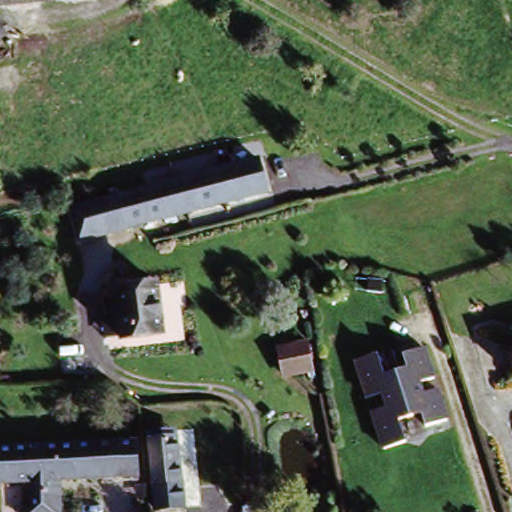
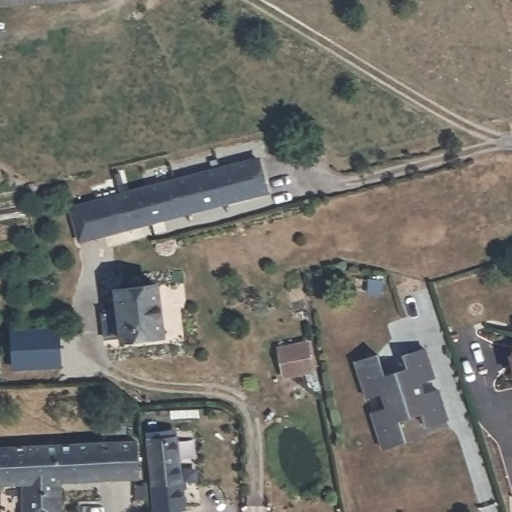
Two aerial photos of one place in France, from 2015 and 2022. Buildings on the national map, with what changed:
unchanged [(271,197),(129,232),(122,202),(264,167),(271,197)]
unchanged [(89,244),(73,208),(116,197),(125,235),(89,244)]
unchanged [(168,336),(126,341),(125,330),(109,332),(107,310),(123,307),(120,291),(161,286),(168,336)]
new [(54,326),(58,363),(11,367),(8,331),(54,326)]
unchanged [(313,342),(318,368),(288,374),(283,347),(313,342)]
unchanged [(419,387),(424,399),(437,395),(446,425),(425,432),(421,418),(399,426),(405,447),(384,454),(372,417),(386,413),(381,398),(368,403),(356,366),(377,359),(384,382),(407,375),(402,360),(423,353),(433,383),(419,387)]
unchanged [(181,442),(188,512),(160,512),(153,445),(181,442)]
unchanged [(59,486),(59,512),(24,512),(24,487),(0,488),(0,453),(136,447),(138,482),(59,486)]

